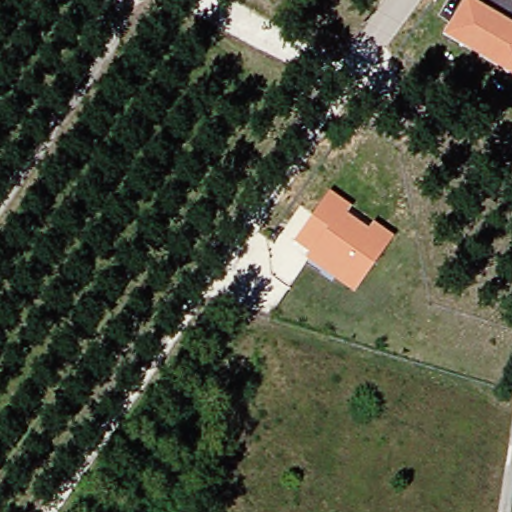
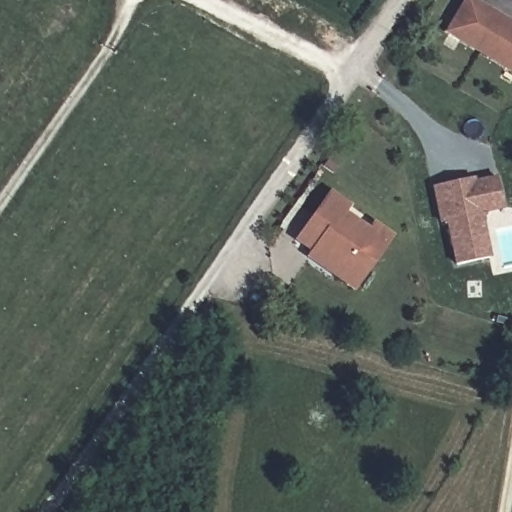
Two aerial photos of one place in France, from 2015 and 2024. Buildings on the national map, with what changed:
unchanged [(445,32),(463,0),(473,0),(512,22),(512,72),(445,32)]
new [(474,177),(475,180),(497,176),(504,210),(483,214),(490,258),(456,264),(448,224),(441,225),(433,186),(474,177)]
unchanged [(306,257),(311,250),(295,240),(329,190),(352,206),(346,213),(369,228),(373,221),(394,235),(354,292),(306,257)]

